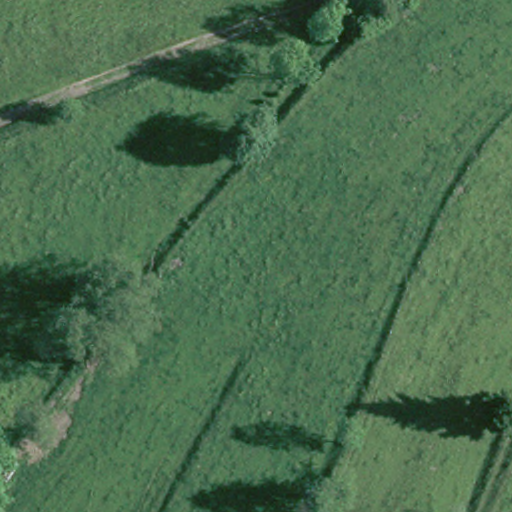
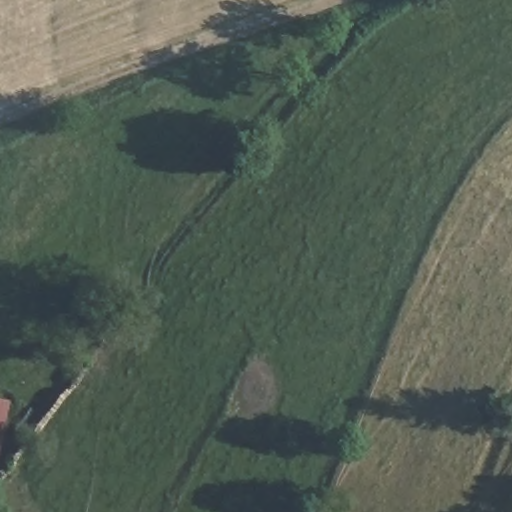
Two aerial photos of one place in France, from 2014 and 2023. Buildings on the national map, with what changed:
new [(10,401),(0,449),(0,398),(10,401)]

